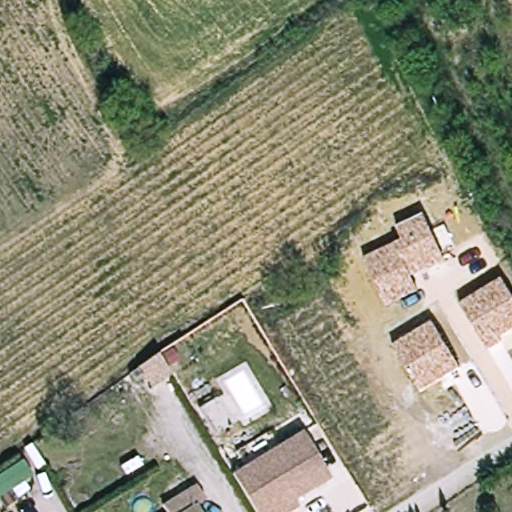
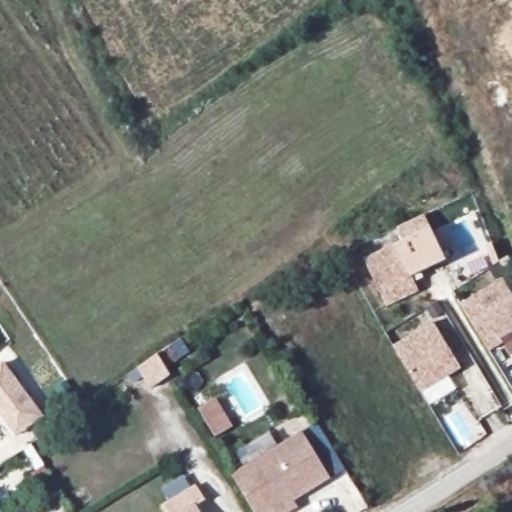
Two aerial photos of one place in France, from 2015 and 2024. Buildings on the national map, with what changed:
unchanged [(425,215),(445,260),(412,274),(419,288),(387,306),(365,258),(403,238),(398,227),(425,215)]
unchanged [(512,327),(500,335),(503,340),(487,348),(462,303),(502,278),(512,294),(512,327)]
unchanged [(460,366),(421,391),(394,344),(431,322),(460,366)]
new [(3,362),(45,417),(16,438),(0,416),(0,364),(3,362)]
unchanged [(169,365),(183,387),(163,400),(149,378),(169,365)]
unchanged [(294,499),(297,507),(287,512),(254,512),(233,473),(302,431),(327,477),(294,499)]
unchanged [(158,511),(194,490),(202,503),(194,508),(196,512),(158,512),(158,511)]

